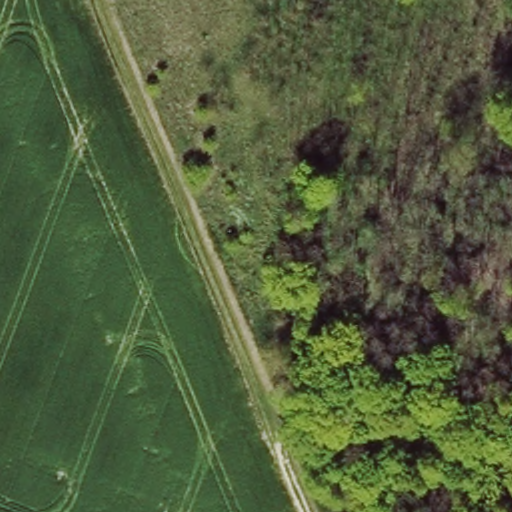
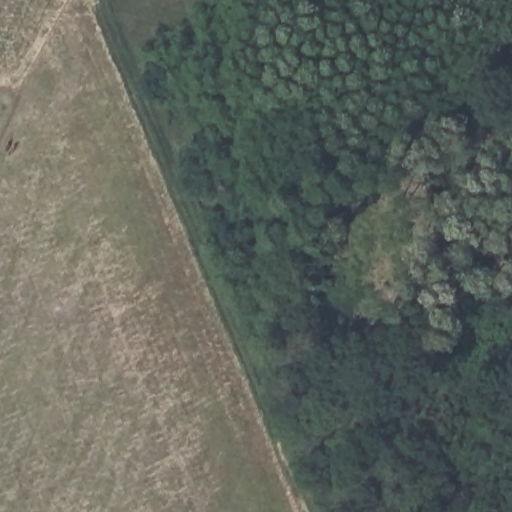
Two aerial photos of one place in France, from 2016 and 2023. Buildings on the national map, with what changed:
unchanged [(511,439),(475,431),(479,413),(512,420),(512,435),(511,439)]

